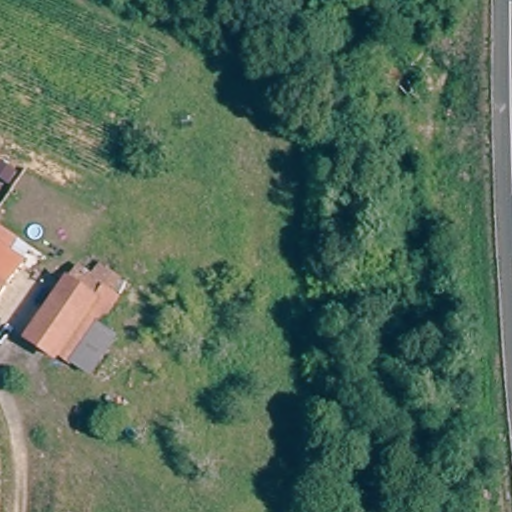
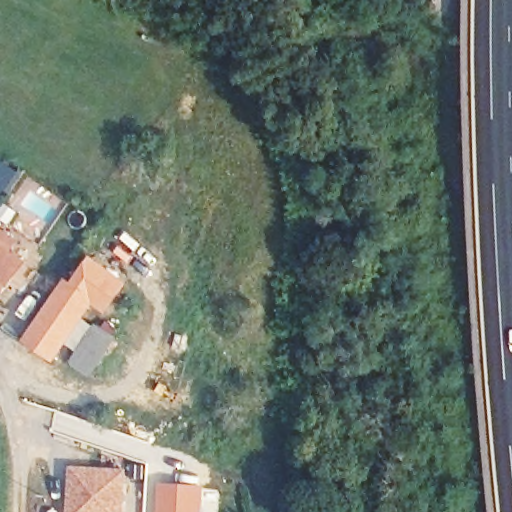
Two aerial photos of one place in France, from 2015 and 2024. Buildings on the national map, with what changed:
unchanged [(12,239),(4,250),(20,261),(0,290),(0,230),(12,239)]
unchanged [(50,350),(46,356),(21,338),(70,265),(85,275),(92,264),(112,277),(101,292),(108,297),(89,325),(64,360),(50,350)]
unchanged [(89,325),(109,340),(85,375),(64,360),(89,325)]
new [(127,512),(70,512),(71,466),(128,469),(127,512)]
new [(205,512),(159,512),(160,484),(205,487),(205,512)]

